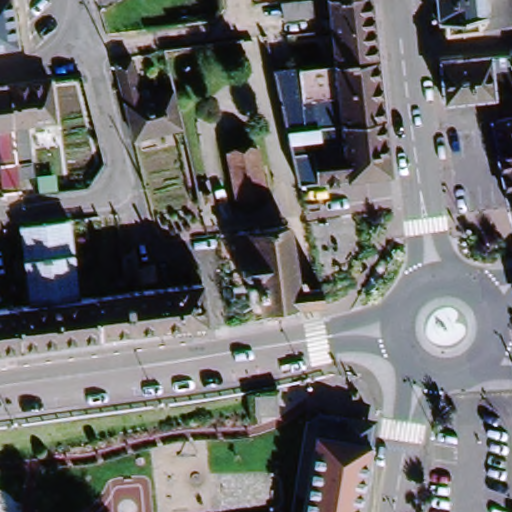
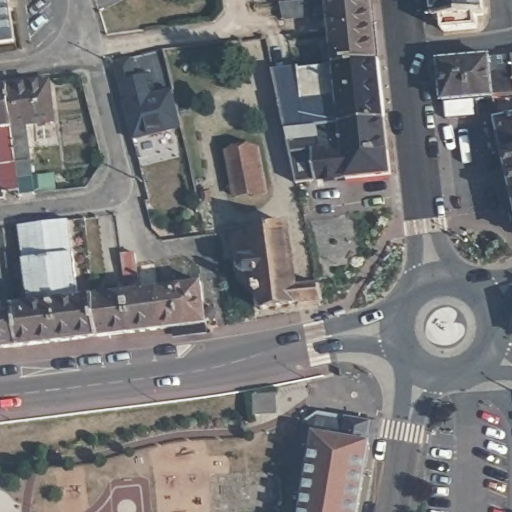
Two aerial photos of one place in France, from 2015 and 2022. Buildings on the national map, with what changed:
unchanged [(0,50),(0,0),(14,0),(19,47),(0,50)]
unchanged [(281,14),(278,0),(309,0),(311,11),(281,14)]
unchanged [(369,0),(371,23),(329,28),(325,0),(369,0)]
unchanged [(426,0),(474,0),(476,12),(468,13),(470,26),(437,29),(435,16),(428,17),(426,0)]
unchanged [(371,23),(375,57),(332,61),(329,28),(371,23)]
unchanged [(443,93),(440,53),(512,47),(512,88),(493,89),(443,93)]
unchanged [(133,137),(111,59),(128,55),(139,96),(171,88),(179,127),(133,137)]
unchanged [(291,65),(295,65),(332,61),(375,57),(382,117),(339,121),(316,123),(284,127),(271,67),(291,65)]
unchanged [(13,160),(17,187),(2,189),(0,174),(0,84),(3,83),(47,77),(53,119),(23,122),(28,158),(13,160)]
unchanged [(505,146),(497,112),(512,110),(512,179),(505,146)]
unchanged [(382,117),(388,172),(296,182),(284,127),(316,123),(319,147),(342,145),(339,121),(382,117)]
unchanged [(261,191),(231,195),(224,150),(255,146),(261,191)]
unchanged [(51,300),(27,303),(21,257),(16,224),(41,221),(66,218),(70,251),(76,297),(51,300)]
unchanged [(298,283),(323,279),(326,294),(265,303),(259,268),(248,270),(242,265),(235,227),(288,218),(298,283)]
unchanged [(134,277),(122,279),(119,253),(131,252),(134,277)]
unchanged [(157,287),(200,281),(205,321),(162,327),(157,287)]
unchanged [(162,327),(129,331),(123,291),(157,287),(162,327)]
unchanged [(123,291),(129,331),(96,335),(91,295),(123,291)]
unchanged [(56,340),(51,300),(76,297),(91,295),(96,335),(56,340)]
unchanged [(51,300),(56,340),(17,345),(12,305),(27,303),(51,300)]
unchanged [(12,305),(17,345),(0,348),(0,307),(12,305)]
unchanged [(279,416),(258,419),(255,400),(276,397),(279,416)]
unchanged [(303,497),(295,495),(306,436),(308,422),(318,419),(321,418),(363,420),(372,432),(370,446),(358,512),(300,512),(303,497)]

